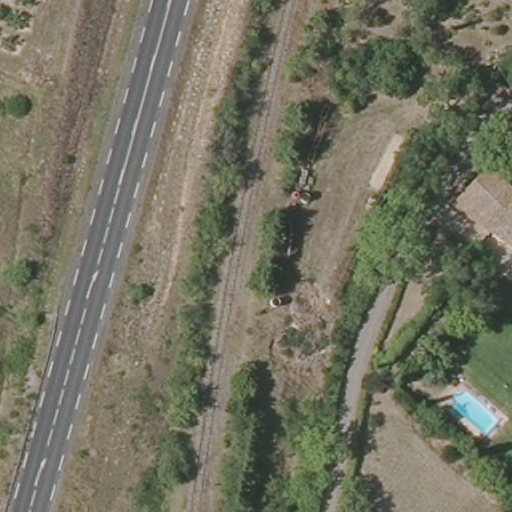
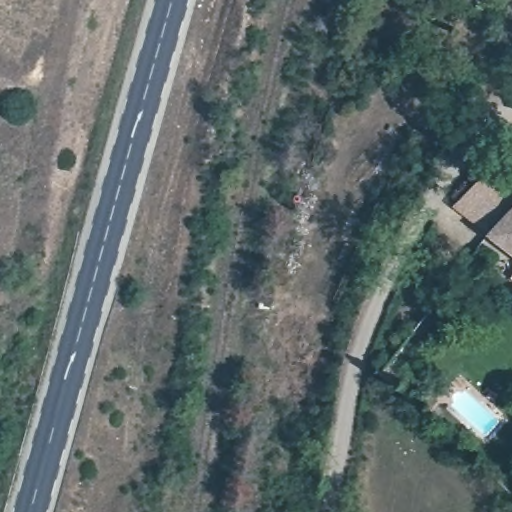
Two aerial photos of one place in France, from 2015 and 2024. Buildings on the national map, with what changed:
unchanged [(490,165),(512,185),(512,247),(493,232),(455,201),(490,165)]

